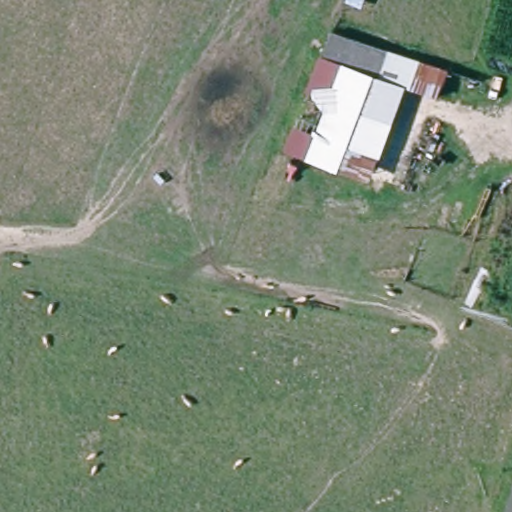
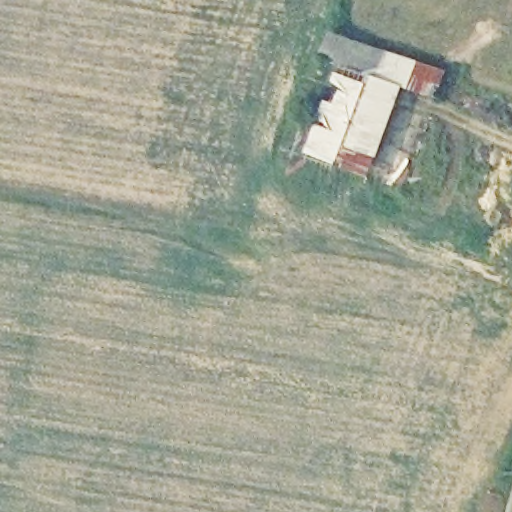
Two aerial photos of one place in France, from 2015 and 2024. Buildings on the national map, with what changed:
unchanged [(310,49),(320,54),(329,27),(451,66),(439,101),(406,88),(371,182),(276,147),(310,49)]

